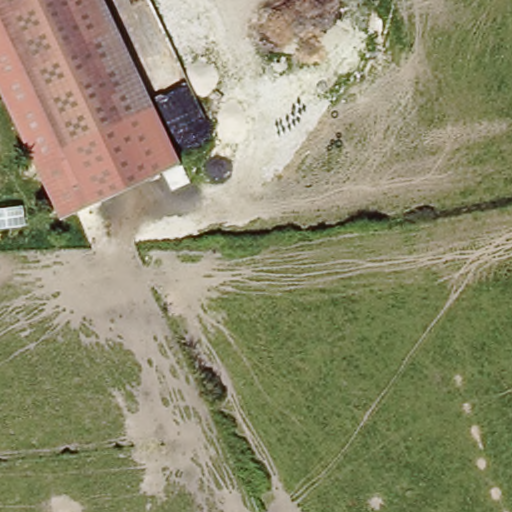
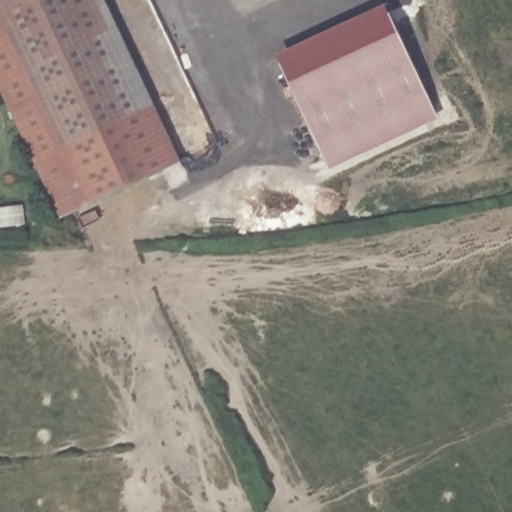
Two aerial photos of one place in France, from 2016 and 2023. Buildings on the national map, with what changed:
unchanged [(65,145),(0,11),(0,0),(105,0),(155,105),(65,145)]
unchanged [(155,105),(178,161),(90,204),(61,219),(0,87),(0,11),(65,145),(155,105)]
new [(390,14),(440,120),(331,169),(281,64),(390,14)]

